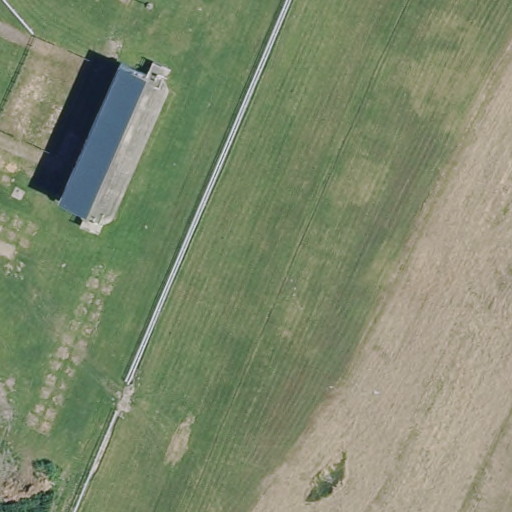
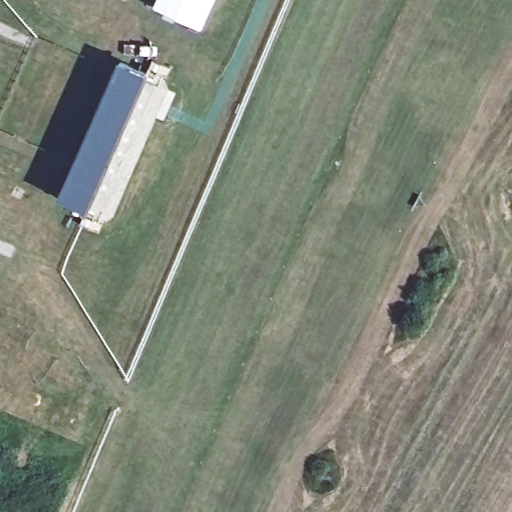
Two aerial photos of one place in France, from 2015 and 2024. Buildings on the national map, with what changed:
new [(154,7),(157,0),(216,0),(202,30),(154,7)]
unchanged [(112,64),(138,74),(144,63),(161,71),(158,80),(155,79),(89,222),(93,224),(88,235),(69,227),(75,215),(49,203),(112,64)]

